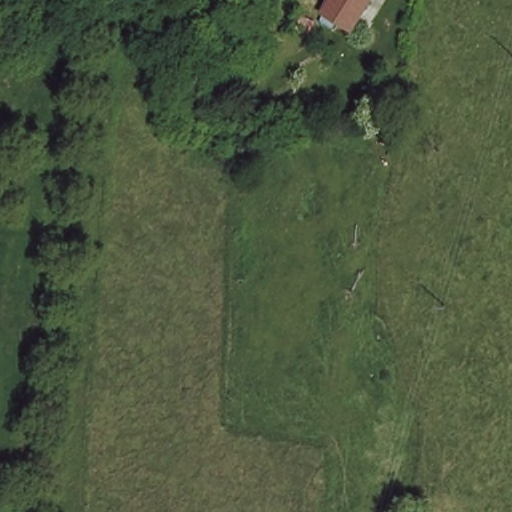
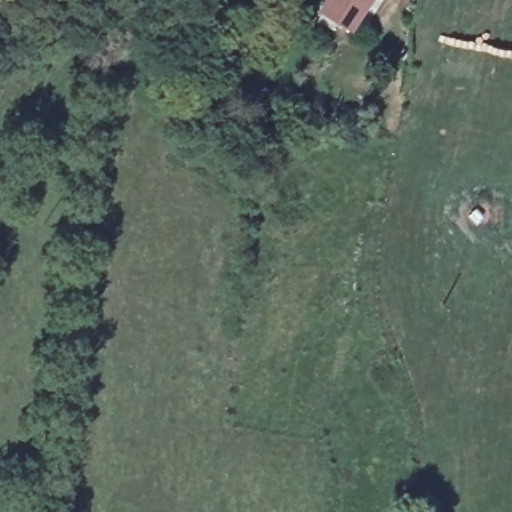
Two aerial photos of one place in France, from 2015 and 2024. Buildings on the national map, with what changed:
unchanged [(369,0),(353,27),(317,9),(322,0),(369,0)]

